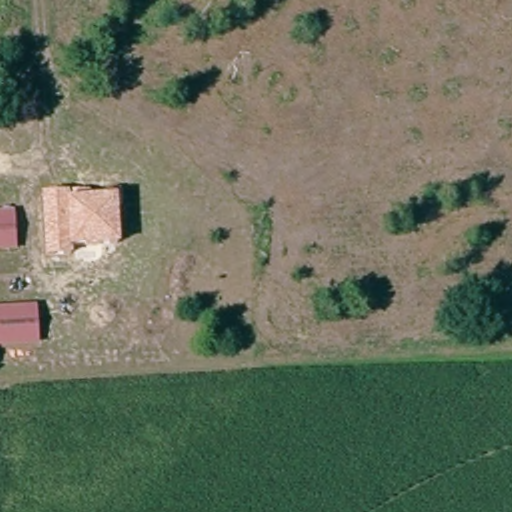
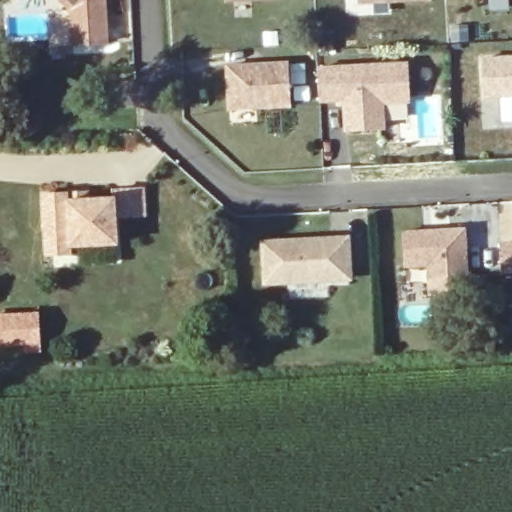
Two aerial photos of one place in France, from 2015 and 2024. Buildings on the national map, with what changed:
new [(70,49),(68,9),(59,0),(107,0),(109,46),(70,49)]
new [(283,0),(225,1),(225,0),(283,0)]
new [(431,0),(431,1),(357,4),(357,0),(431,0)]
new [(482,57),(512,56),(512,96),(483,96),(482,57)]
new [(226,110),(225,65),(288,61),(290,109),(226,110)]
new [(385,105),(385,130),(343,131),(342,102),(320,102),(319,65),(407,61),(410,103),(385,105)]
new [(44,256),(41,195),(87,190),(87,199),(115,196),(119,246),(71,247),(71,254),(44,256)]
demolished [(50,241),(50,245),(0,248),(0,213),(47,209),(50,241)]
new [(405,267),(402,230),(465,226),(470,294),(428,297),(426,266),(405,267)]
new [(261,286),(260,240),(350,236),(352,281),(261,286)]
new [(500,244),(512,243),(512,274),(502,275),(500,244)]
demolished [(230,282),(199,284),(199,260),(229,258),(230,282)]
unchanged [(36,340),(0,343),(0,307),(35,305),(36,340)]

